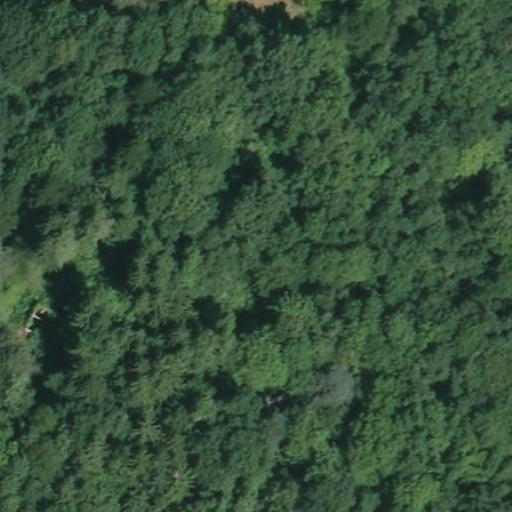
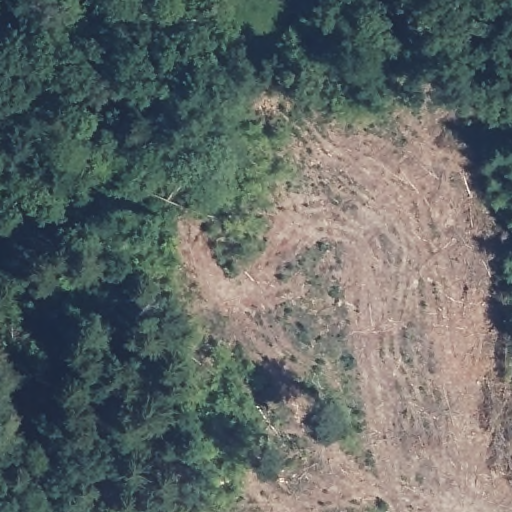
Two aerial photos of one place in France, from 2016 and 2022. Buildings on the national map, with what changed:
unchanged [(30,334),(24,344),(10,335),(20,321),(28,326),(41,304),(71,321),(55,348),(30,334)]

